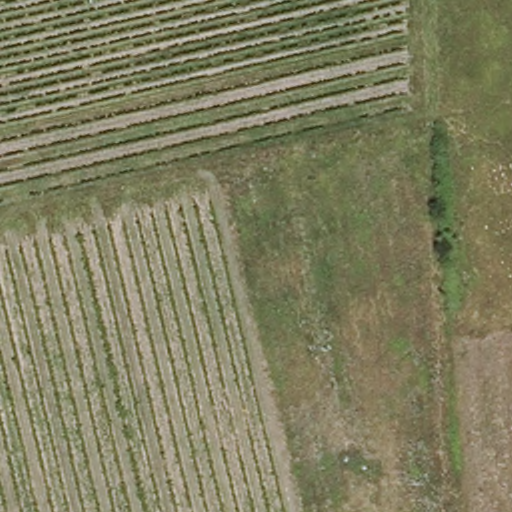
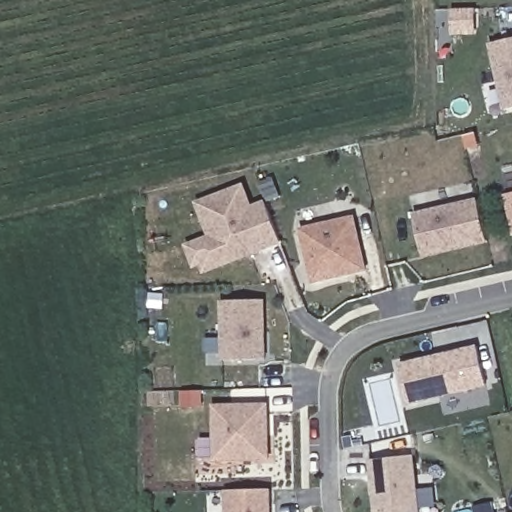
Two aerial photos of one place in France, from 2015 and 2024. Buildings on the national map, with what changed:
new [(512,40),(512,110),(509,110),(494,44),(512,40)]
new [(210,226),(203,205),(219,199),(247,188),(255,210),(269,204),(285,244),(209,273),(205,265),(199,267),(192,248),(215,239),(210,226)]
new [(427,256),(418,215),(482,201),(491,241),(427,256)]
new [(359,218),(371,270),(319,282),(307,230),(359,218)]
new [(268,301),(269,361),(227,362),(226,302),(268,301)]
new [(482,348),(490,386),(413,403),(404,366),(482,348)]
new [(270,406),(272,459),(219,460),(217,407),(270,406)]
new [(417,456),(423,512),(380,512),(374,460),(417,456)]
new [(272,490),(273,512),(231,512),(230,491),(272,490)]

